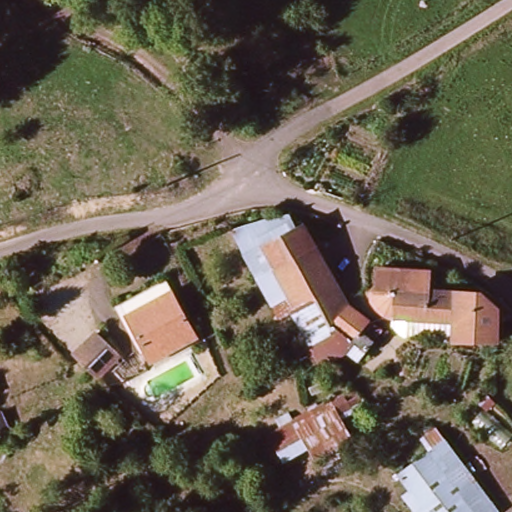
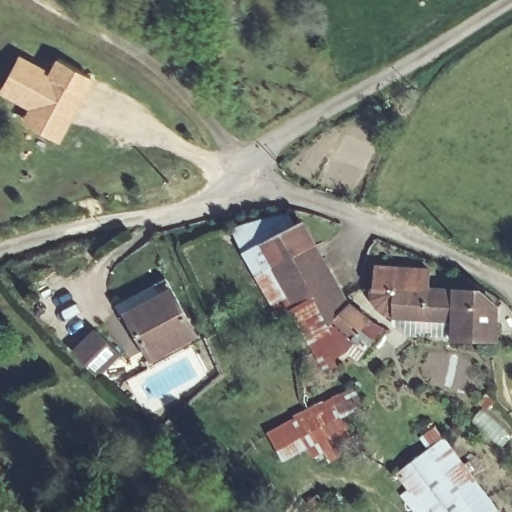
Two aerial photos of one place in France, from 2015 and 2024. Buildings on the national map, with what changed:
new [(50,68),(57,56),(96,77),(87,93),(61,141),(22,120),(29,108),(0,91),(20,53),(50,68)]
unchanged [(352,300),(377,325),(360,343),(337,320),(305,308),(299,311),(292,299),(279,307),(251,251),(266,243),(307,223),(321,248),(339,283),(352,300)]
unchanged [(422,338),(409,340),(411,322),(396,322),(385,318),(377,312),(374,302),(379,266),(429,269),(428,290),(471,294),(497,311),(494,342),(455,338),(455,342),(444,337),(422,338)]
unchanged [(162,286),(202,340),(164,369),(124,313),(162,286)]
unchanged [(85,370),(65,356),(87,326),(122,352),(100,381),(85,370)]
unchanged [(332,397),(355,387),(364,405),(342,418),(356,443),(332,459),(320,442),(284,462),(267,432),(332,397)]
unchanged [(440,438),(499,512),(441,512),(423,489),(410,499),(393,477),(440,438)]
unchanged [(441,512),(421,512),(410,499),(423,489),(441,512)]

